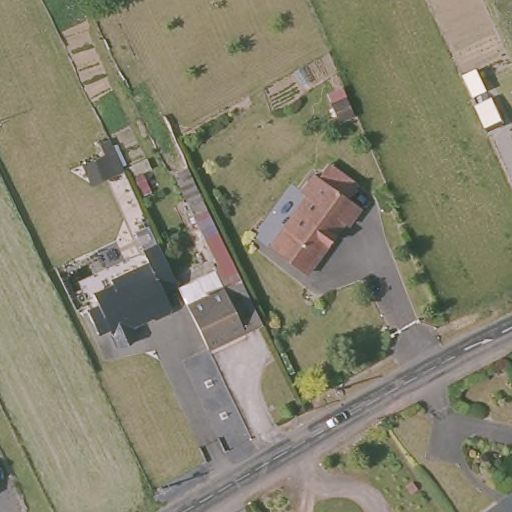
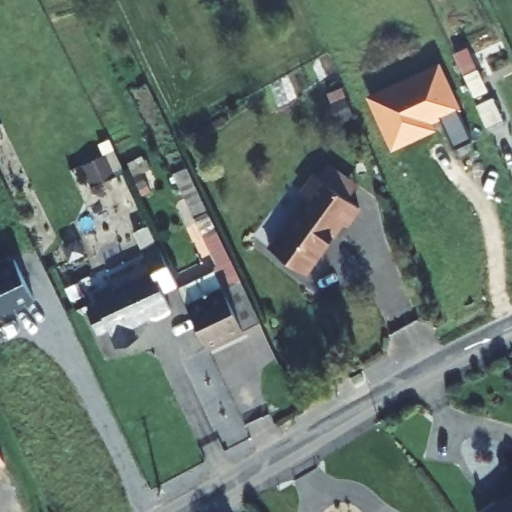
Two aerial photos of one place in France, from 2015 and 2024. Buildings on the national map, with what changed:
new [(468,46),(489,90),(473,98),(453,53),(468,46)]
new [(440,61),(461,109),(458,111),(472,139),(455,148),(442,119),(433,122),(436,129),(391,150),(365,95),(440,61)]
unchanged [(352,234),(347,231),(310,282),(276,258),(313,207),(305,200),(320,180),(327,186),(337,172),(366,192),(356,206),(365,213),(352,234)]
unchanged [(177,279),(164,286),(172,303),(171,308),(158,314),(153,313),(135,322),(133,323),(139,334),(131,342),(121,344),(112,325),(100,331),(89,309),(100,303),(95,292),(114,282),(112,278),(113,277),(149,259),(143,247),(158,239),(177,279)]
unchanged [(227,280),(217,259),(231,251),(242,273),(263,315),(208,340),(188,299),(227,280)]
new [(0,257),(9,253),(30,294),(12,304),(2,308),(0,309),(0,257)]
unchanged [(510,503),(512,501),(512,507),(510,503)]
unchanged [(512,507),(512,512),(505,512),(512,507)]
unchanged [(497,509),(500,512),(493,512),(497,509)]

